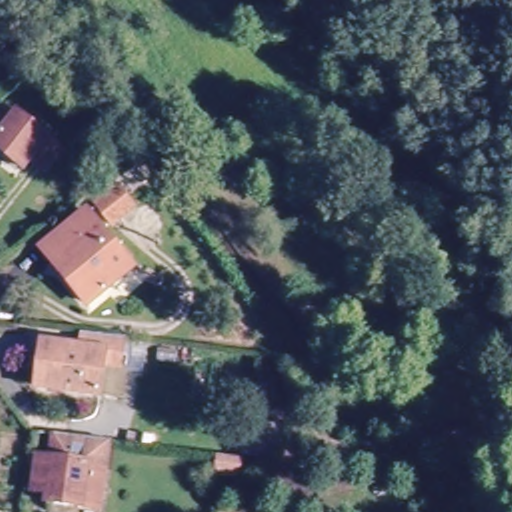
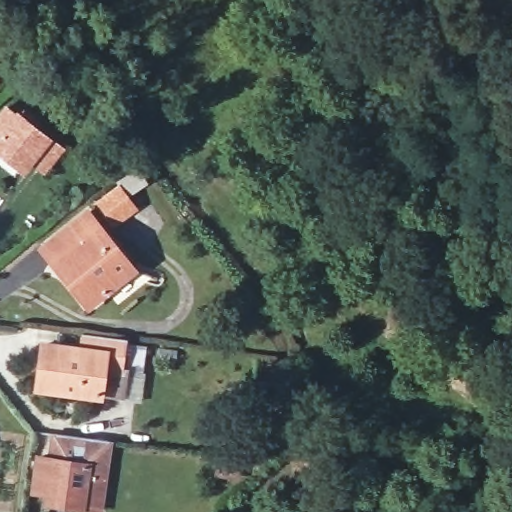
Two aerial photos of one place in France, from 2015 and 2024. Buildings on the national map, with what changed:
unchanged [(17,155),(10,160),(0,147),(0,105),(12,96),(49,149),(25,167),(17,155)]
unchanged [(125,205),(117,194),(137,179),(146,191),(125,205)]
unchanged [(73,280),(66,268),(61,271),(41,241),(86,210),(128,271),(82,303),(69,283),(73,280)]
unchanged [(31,386),(38,348),(74,353),(77,335),(119,340),(116,360),(113,373),(99,370),(94,397),(31,386)]
unchanged [(111,448),(106,477),(101,512),(56,512),(43,510),(45,500),(30,498),(34,465),(49,467),(52,440),(98,446),(111,448)]
unchanged [(216,459),(235,461),(232,477),(212,475),(216,459)]

